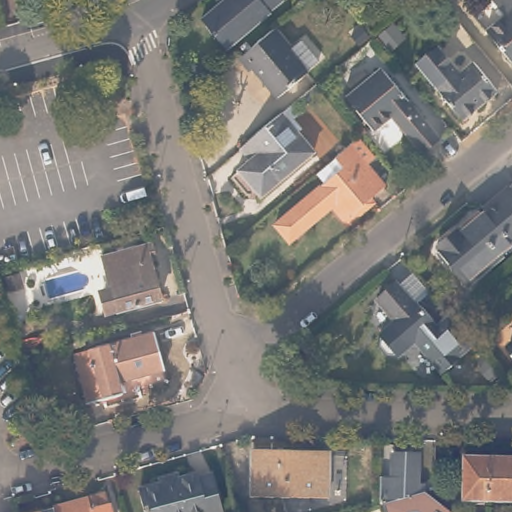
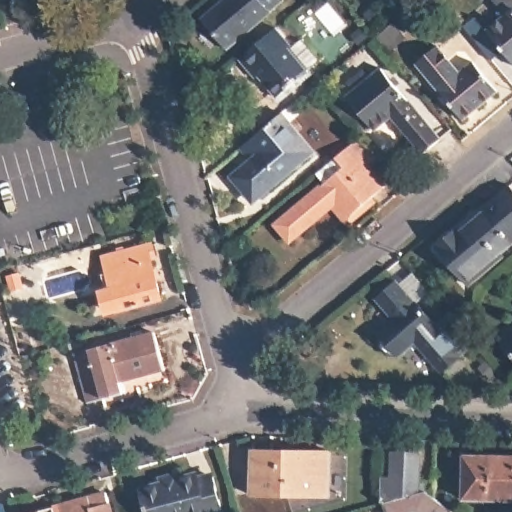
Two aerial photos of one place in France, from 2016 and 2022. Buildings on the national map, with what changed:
unchanged [(270,10),(226,49),(200,18),(220,0),(276,0),(267,8),(270,10)]
unchanged [(443,22),(426,0),(442,0),(453,14),(443,22)]
unchanged [(482,31),(501,14),(488,0),(512,0),(512,65),(482,31)]
unchanged [(287,50),(296,42),(312,62),(302,71),(303,74),(271,100),(246,71),(244,74),(232,61),(270,29),(287,50)]
unchanged [(453,74),(466,63),(489,89),(455,119),(410,67),(431,48),(453,74)]
unchanged [(442,136),(425,151),(395,117),(377,132),(347,96),(355,90),(348,82),(365,69),(372,76),(383,68),(442,136)]
unchanged [(292,111),(282,119),(278,115),(288,107),(292,111)]
unchanged [(246,186),(236,174),(247,164),(237,151),(242,148),(277,117),(311,156),(265,194),(257,200),(246,186)]
unchanged [(361,135),(378,156),(369,164),(387,185),(354,214),(342,199),(291,241),(277,224),(345,166),(337,156),(340,154),(352,144),(361,135)]
unchanged [(492,254),(495,258),(462,287),(429,249),(450,231),(452,234),(478,212),(479,214),(490,204),(487,200),(498,190),(499,189),(512,205),(512,238),(492,254)]
unchanged [(112,270),(107,254),(154,242),(159,256),(152,258),(164,298),(122,309),(117,310),(109,306),(106,294),(110,286),(111,286),(107,272),(112,270)]
unchanged [(407,336),(390,351),(379,350),(371,341),(372,330),(387,317),(370,296),(389,279),(392,283),(406,270),(421,289),(407,300),(408,301),(408,300),(428,323),(441,313),(455,329),(466,342),(434,369),(407,336)]
unchanged [(24,273),(27,287),(16,290),(12,277),(24,273)]
unchanged [(500,344),(512,334),(512,359),(500,344)]
unchanged [(162,374),(119,385),(122,396),(82,407),(68,361),(152,337),(162,374)]
unchanged [(332,452),(331,494),(252,492),(252,449),(332,452)]
unchanged [(467,498),(467,453),(492,454),(492,467),(492,498),(467,498)]
unchanged [(492,467),(492,454),(512,454),(512,498),(492,498),(492,467)]
unchanged [(421,463),(420,496),(381,508),(382,489),(382,487),(394,488),(395,462),(421,463)]
unchanged [(217,474),(226,508),(210,512),(150,512),(142,485),(164,479),(162,474),(181,469),(182,474),(200,471),(202,478),(217,474)]
unchanged [(110,492),(112,502),(113,502),(116,512),(34,512),(92,497),(110,492)]
unchanged [(437,506),(445,512),(384,512),(383,510),(427,498),(437,506)]

